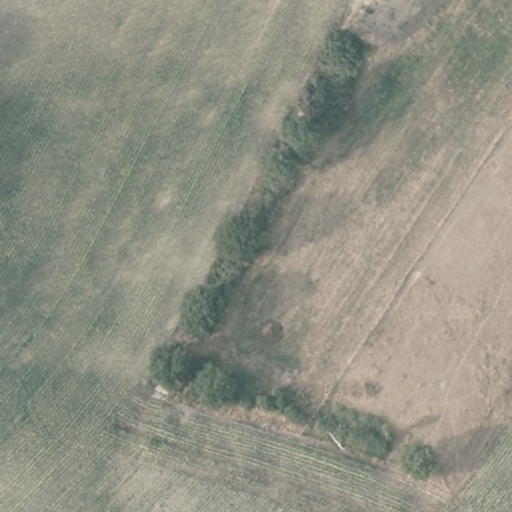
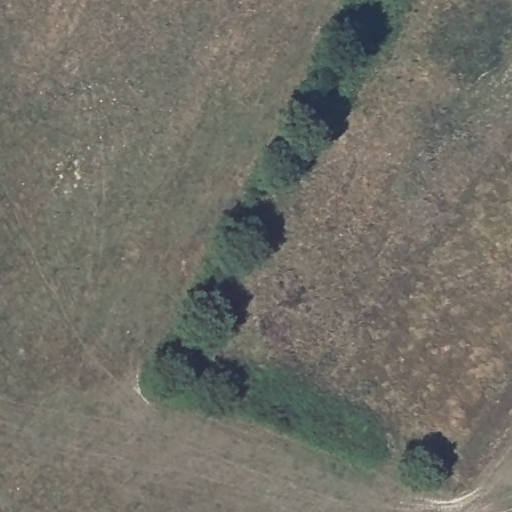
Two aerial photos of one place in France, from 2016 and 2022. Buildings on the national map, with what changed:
[]

